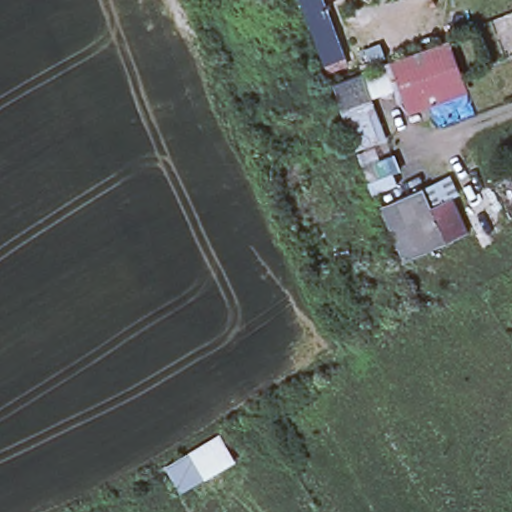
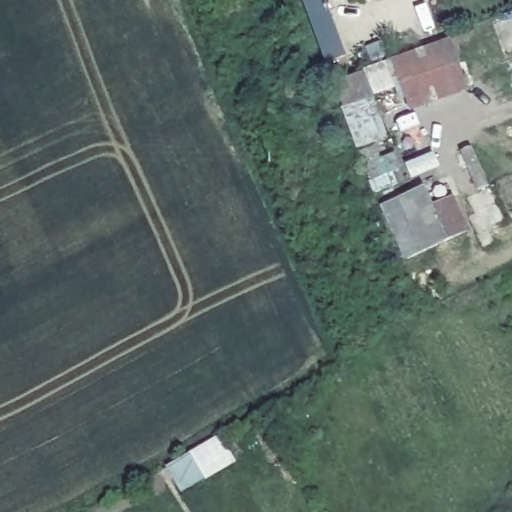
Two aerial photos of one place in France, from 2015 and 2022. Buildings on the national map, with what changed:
unchanged [(301,0),(324,0),(346,56),(348,63),(336,67),(328,69),(325,64),(301,0)]
unchanged [(347,106),(339,82),(369,71),(392,64),(392,63),(454,39),(471,87),(416,107),(412,98),(405,100),(401,86),(376,94),(377,96),(347,106)]
unchanged [(401,181),(378,189),(361,153),(386,141),(401,181)]
unchanged [(409,253),(384,199),(424,180),(452,169),(461,188),(453,193),(467,225),(409,253)]
unchanged [(512,221),(512,227),(484,243),(478,229),(478,228),(469,210),(476,207),(468,192),(490,181),(512,221)]

